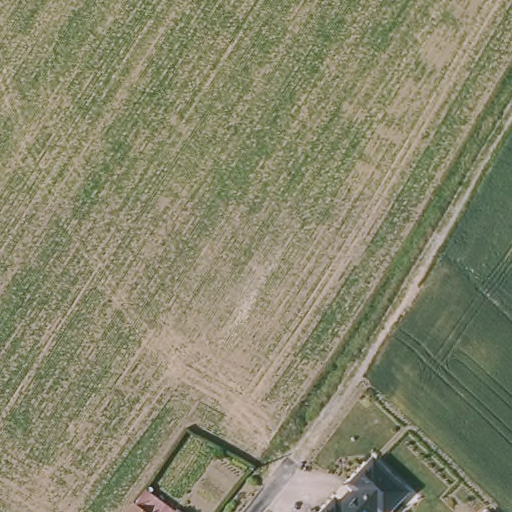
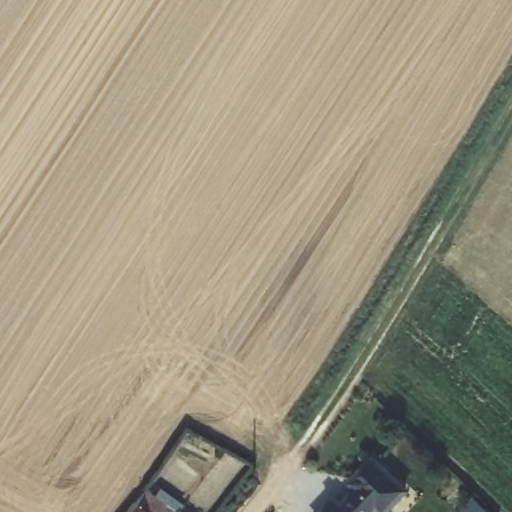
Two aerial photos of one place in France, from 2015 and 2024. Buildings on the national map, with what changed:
unchanged [(342,503),(355,491),(348,484),(376,457),(410,491),(389,512),(320,512),(335,496),(342,503)]
unchanged [(137,489),(173,512),(177,510),(180,512),(119,512),(137,489)]

